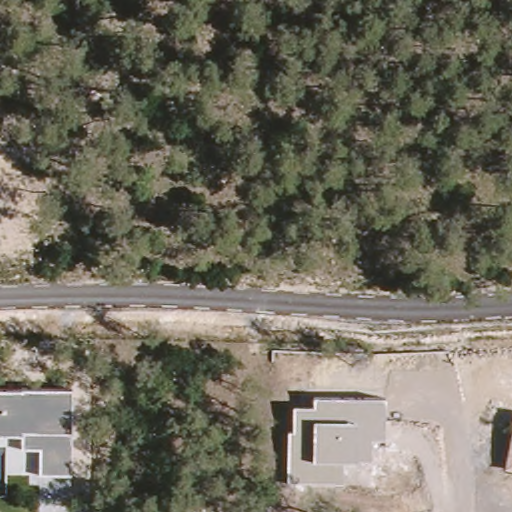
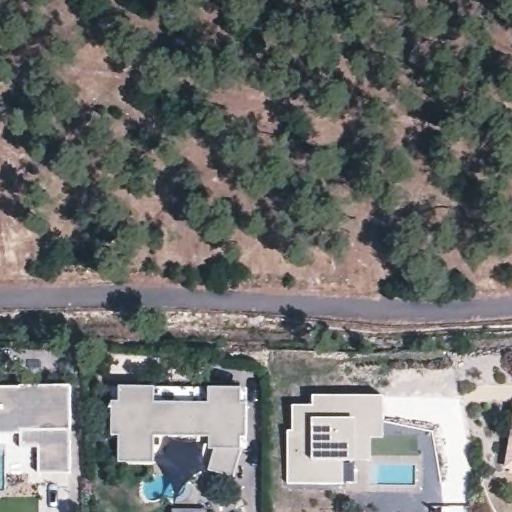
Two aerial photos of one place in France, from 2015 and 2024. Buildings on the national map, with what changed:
unchanged [(72,388),(72,433),(71,475),(39,474),(40,448),(22,447),(23,434),(0,434),(0,388),(72,388)]
new [(248,390),(249,449),(243,449),(234,479),(210,471),(217,450),(211,450),(211,438),(156,437),(156,464),(120,463),(120,436),(113,436),(112,402),(121,402),(122,388),(248,390)]
unchanged [(289,432),(294,432),(294,407),(315,407),(314,397),(385,398),(385,439),(371,439),(371,463),(357,461),(346,461),(346,485),(288,485),(289,432)]
unchanged [(506,468),(512,436),(512,469),(506,468)]

